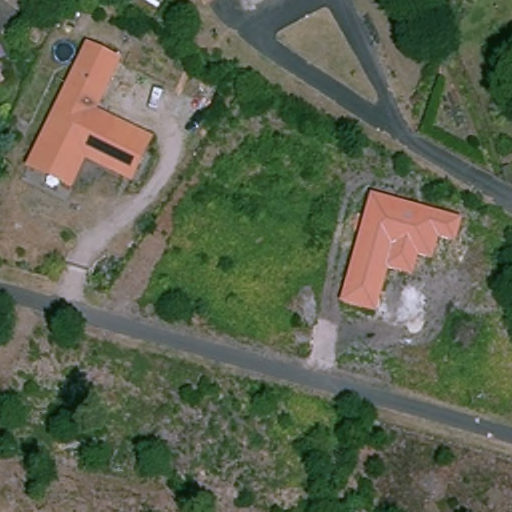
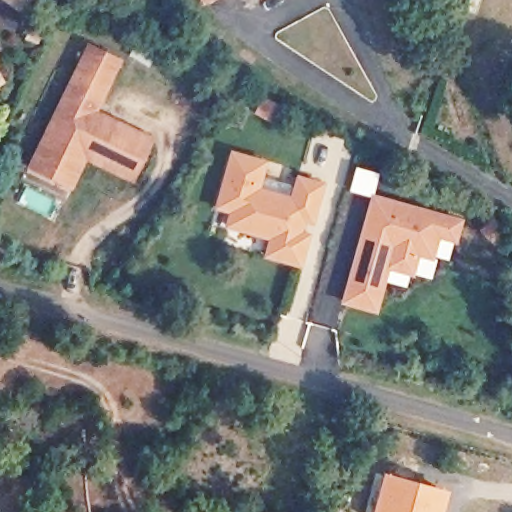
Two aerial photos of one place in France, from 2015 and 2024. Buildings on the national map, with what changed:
unchanged [(3,0),(28,0),(20,12),(3,0)]
unchanged [(204,0),(221,0),(209,8),(204,0)]
unchanged [(123,61),(102,108),(156,136),(133,184),(86,161),(73,191),(25,167),(87,44),(123,61)]
new [(268,160),(261,187),(290,195),(296,174),(327,184),(315,225),(309,224),(307,231),(313,234),(304,268),(262,257),(267,240),(224,227),(227,213),(213,208),(230,149),(268,160)]
unchanged [(464,221),(457,244),(440,240),(434,262),(418,258),(413,278),(388,272),(376,316),(339,305),(371,195),(464,221)]
new [(379,471),(446,489),(439,512),(367,512),(379,471)]

